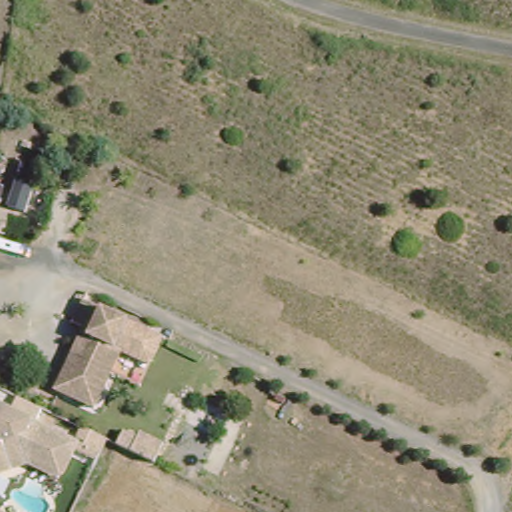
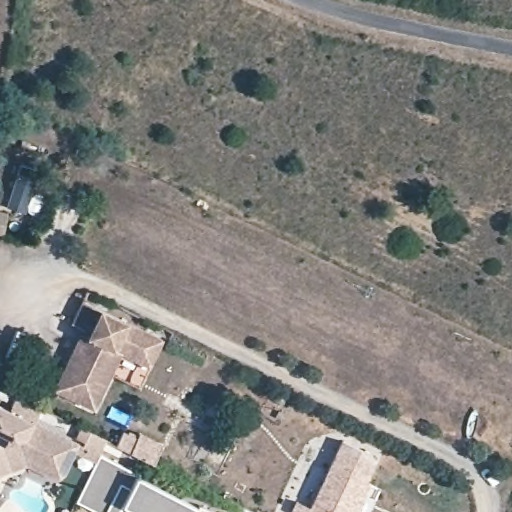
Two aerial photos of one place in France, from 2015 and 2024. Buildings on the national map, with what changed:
unchanged [(158,338),(145,365),(117,351),(90,407),(50,388),(80,327),(68,322),(79,299),(158,338)]
unchanged [(57,477),(25,461),(0,469),(0,404),(75,440),(57,477)]
new [(125,424),(162,442),(152,461),(115,443),(125,424)]
new [(312,508),(342,443),(376,457),(365,482),(371,484),(358,512),(292,512),(297,502),(312,508)]
new [(104,512),(99,512),(75,499),(98,452),(137,471),(136,473),(197,504),(198,502),(218,512),(111,512),(105,509),(104,512)]
new [(250,512),(243,512),(244,509),(250,512)]
new [(0,512),(0,511),(3,512),(0,512)]

